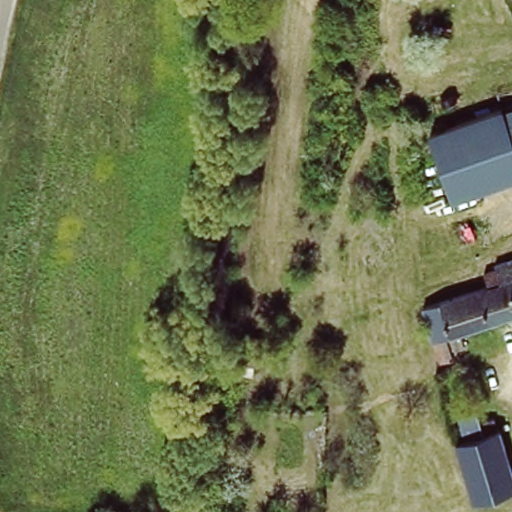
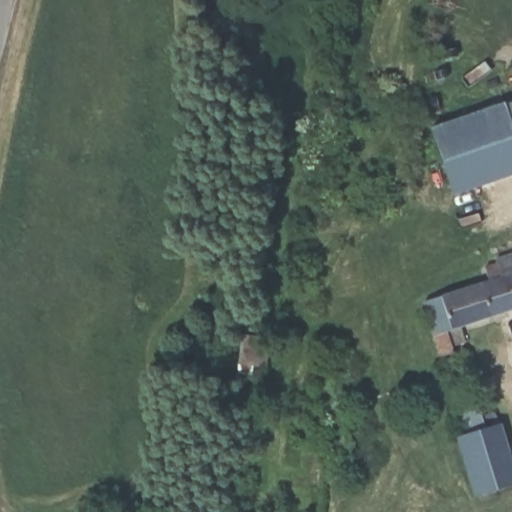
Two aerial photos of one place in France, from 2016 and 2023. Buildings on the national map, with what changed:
unchanged [(504,103),(512,101),(512,126),(504,103)]
unchanged [(504,103),(512,126),(512,174),(455,194),(432,127),(504,102),(504,103)]
unchanged [(462,347),(452,350),(453,356),(442,359),(435,340),(429,319),(424,303),(444,297),(489,283),(487,274),(500,269),(498,264),(512,259),(512,315),(462,331),(467,346),(462,347)]
unchanged [(487,425),(500,421),(512,455),(512,485),(477,496),(457,435),(467,432),(461,411),(481,405),(487,425)]

